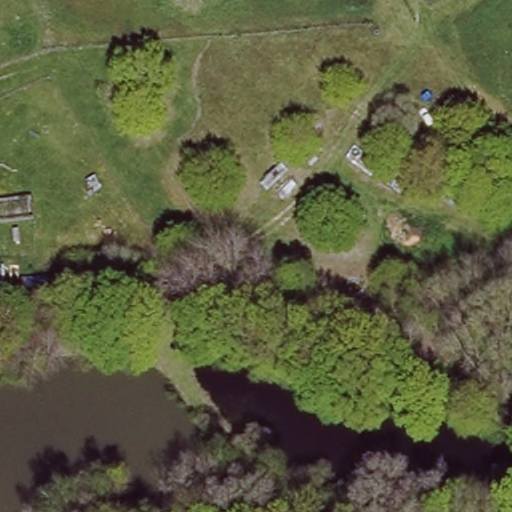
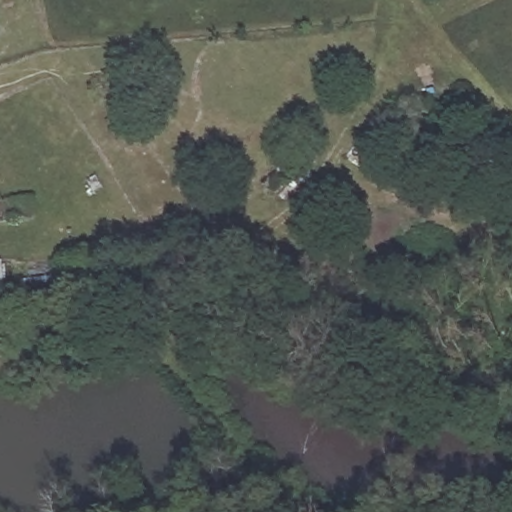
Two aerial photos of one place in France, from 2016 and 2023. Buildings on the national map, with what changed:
unchanged [(3,267),(3,293),(0,293),(0,267),(3,267)]

